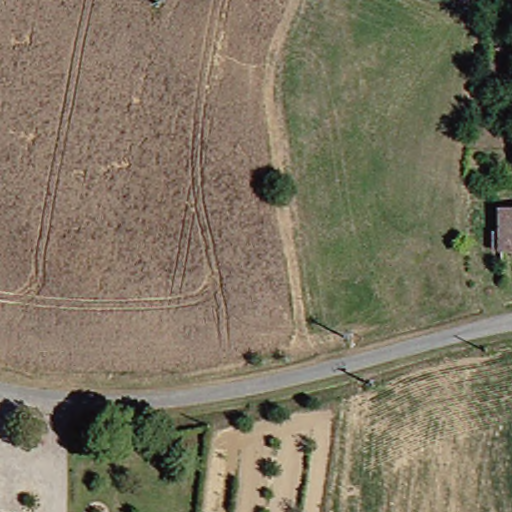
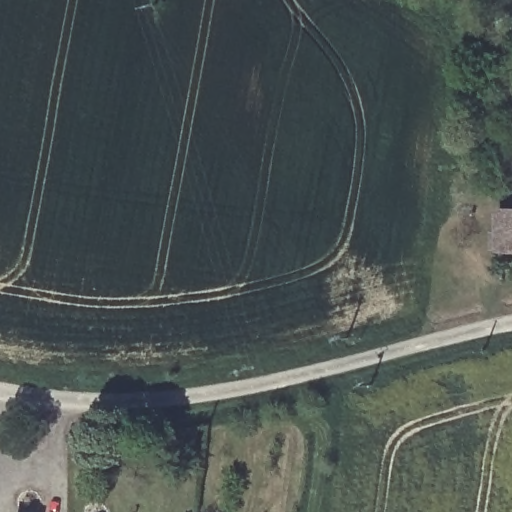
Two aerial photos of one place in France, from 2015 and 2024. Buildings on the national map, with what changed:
unchanged [(502,249),(505,211),(512,211),(512,250),(502,249)]

